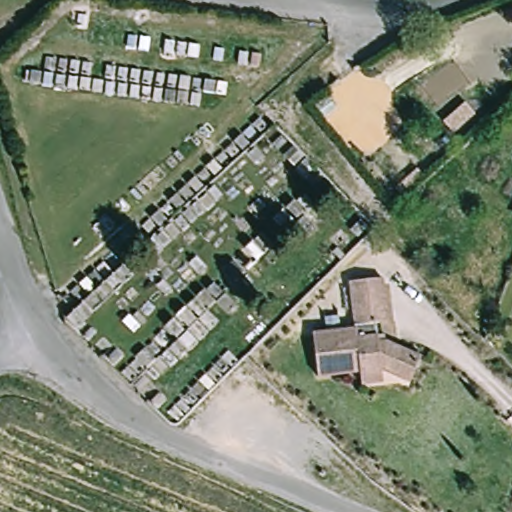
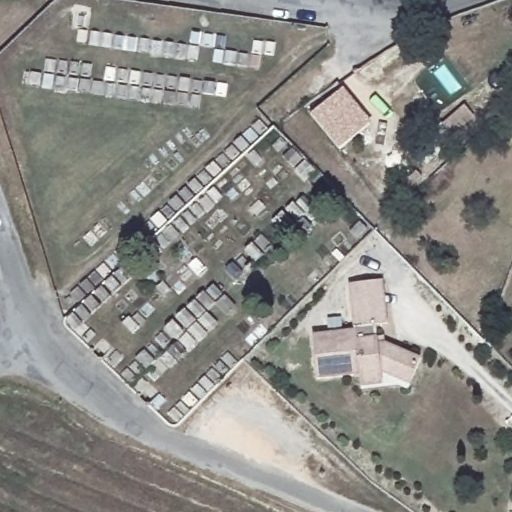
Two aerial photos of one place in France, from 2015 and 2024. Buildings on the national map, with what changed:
demolished [(492,103),(469,66),(480,57),(506,92),(492,103)]
new [(372,122),(340,150),(310,115),(343,87),(372,122)]
unchanged [(421,353),(410,383),(382,372),(322,382),(315,342),(340,337),(353,337),(346,292),(378,287),(384,321),(376,322),(380,341),(386,341),(421,353)]

